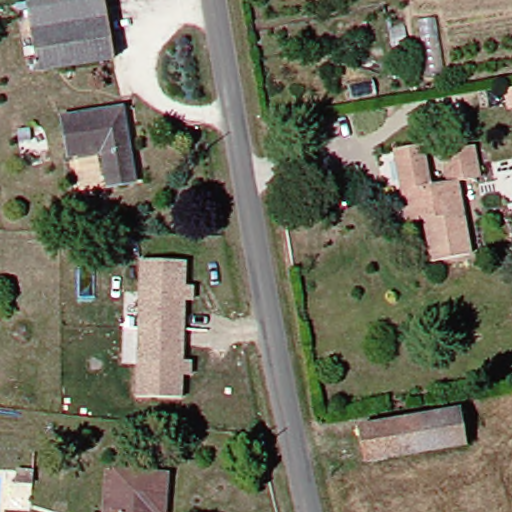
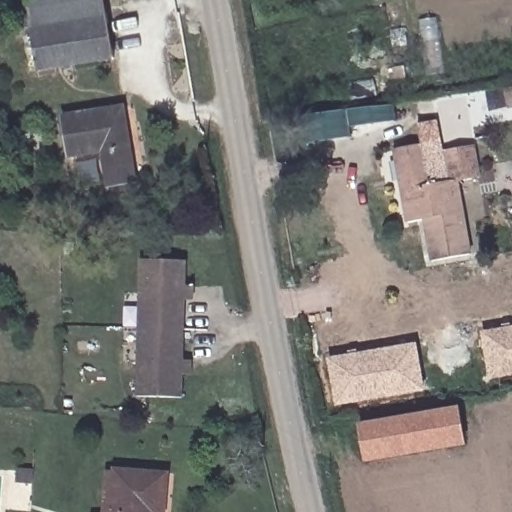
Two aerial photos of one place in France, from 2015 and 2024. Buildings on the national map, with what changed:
unchanged [(17,5),(59,0),(95,0),(106,64),(30,74),(17,5)]
unchanged [(115,107),(127,182),(103,186),(96,150),(62,156),(55,118),(115,107)]
unchanged [(420,185),(438,183),(433,150),(462,145),(467,179),(446,182),(460,254),(423,260),(415,217),(397,220),(385,146),(413,142),(420,185)]
unchanged [(186,376),(178,375),(177,399),(132,398),(136,261),(181,263),(180,289),(189,289),(189,301),(180,301),(179,363),(186,363),(186,376)]
new [(481,331),(512,326),(512,376),(489,380),(481,331)]
new [(327,358),(416,343),(425,392),(336,406),(327,358)]
unchanged [(453,448),(356,465),(350,431),(448,413),(453,448)]
unchanged [(107,472),(103,512),(95,512),(99,471),(107,472)]
unchanged [(159,476),(157,512),(103,512),(107,472),(159,476)]

